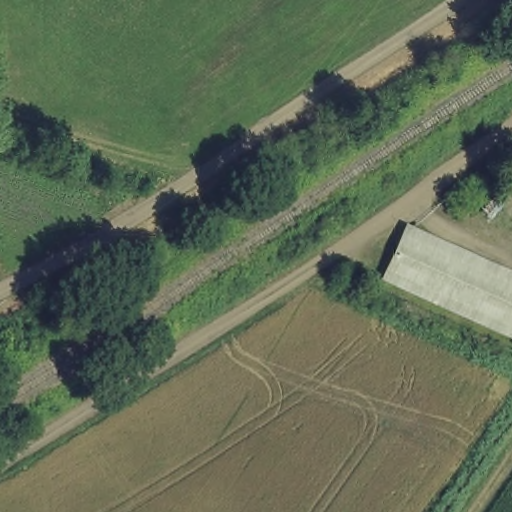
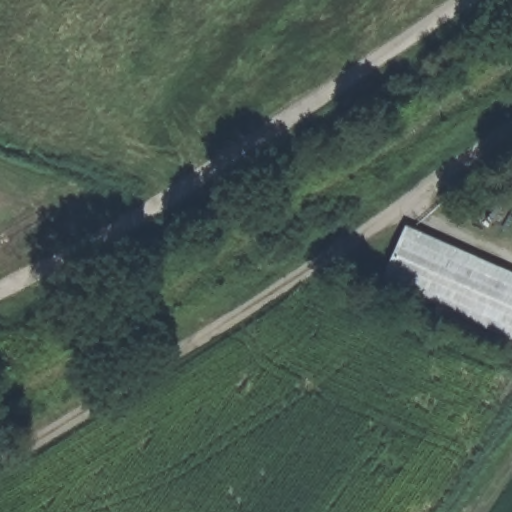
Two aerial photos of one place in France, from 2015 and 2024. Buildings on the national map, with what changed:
unchanged [(385,275),(405,231),(512,280),(512,331),(385,275)]

